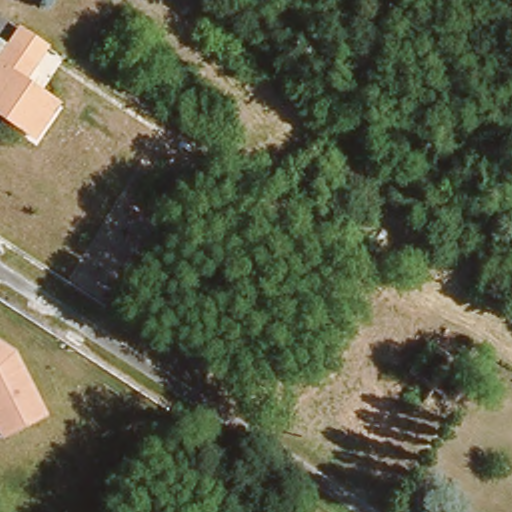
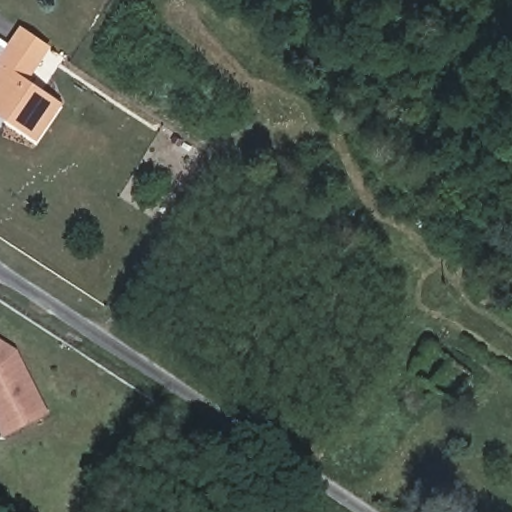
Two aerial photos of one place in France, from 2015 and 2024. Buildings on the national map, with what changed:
unchanged [(34,135),(5,115),(8,110),(0,105),(0,52),(8,40),(20,24),(46,41),(34,59),(22,75),(58,101),(34,135)]
unchanged [(47,415),(1,440),(0,438),(0,341),(14,350),(47,415)]

